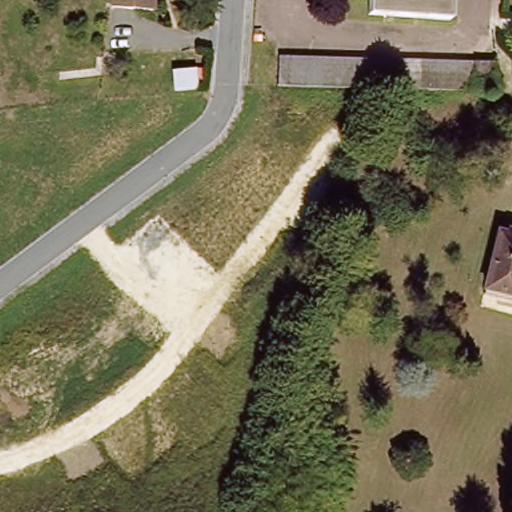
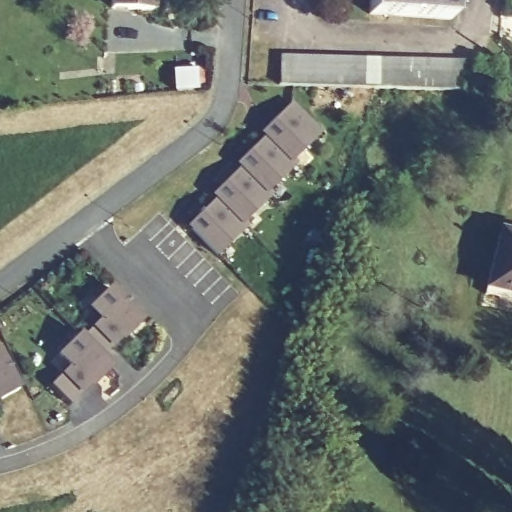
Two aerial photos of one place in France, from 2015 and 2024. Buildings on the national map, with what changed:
unchanged [(116,14),(117,0),(158,0),(157,16),(116,14)]
unchanged [(450,17),(367,13),(368,0),(450,0),(450,17)]
unchanged [(494,59),(494,95),(276,91),(277,56),(494,59)]
unchanged [(201,92),(170,94),(167,69),(198,66),(201,92)]
new [(200,220),(200,213),(224,189),(224,182),(248,158),(249,152),(272,127),(272,120),(290,103),(321,133),(292,160),(296,164),(269,191),(272,194),(244,222),(247,225),(218,254),(192,228),(200,220)]
unchanged [(487,284),(503,228),(512,230),(512,291),(487,284)]
unchanged [(486,290),(487,284),(512,291),(512,297),(486,290)]
new [(69,367),(57,355),(77,336),(80,339),(99,320),(87,308),(107,289),(140,322),(127,335),(125,334),(111,347),(99,358),(110,369),(95,383),(94,381),(68,406),(49,387),(69,367)]
new [(0,400),(0,360),(17,391),(0,400)]

